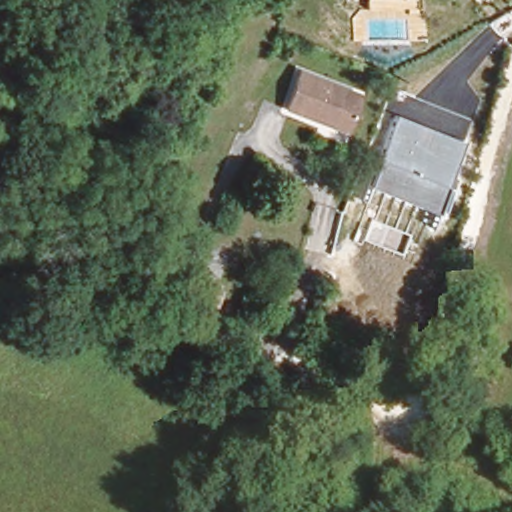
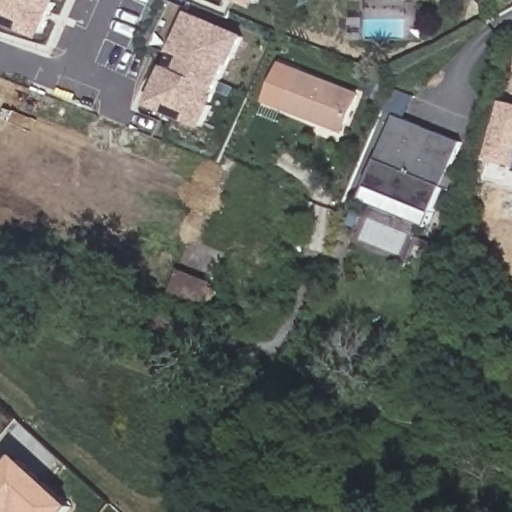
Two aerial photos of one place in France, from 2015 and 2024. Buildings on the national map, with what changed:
new [(0,21),(0,0),(63,0),(45,39),(0,21)]
new [(237,0),(261,0),(257,8),(237,0)]
new [(167,65),(180,70),(185,57),(172,52),(189,12),(247,35),(235,66),(230,65),(216,98),(219,99),(207,129),(150,106),(167,65)]
unchanged [(322,121),(286,107),(298,71),(355,92),(344,123),(342,129),(322,121)]
new [(512,104),(512,186),(486,179),(488,159),(503,101),(512,104)]
unchanged [(435,212),(363,185),(393,115),(462,144),(435,212)]
unchanged [(207,316),(177,302),(188,274),(220,286),(207,316)]
new [(77,506),(72,512),(0,512),(0,476),(19,455),(77,506)]

